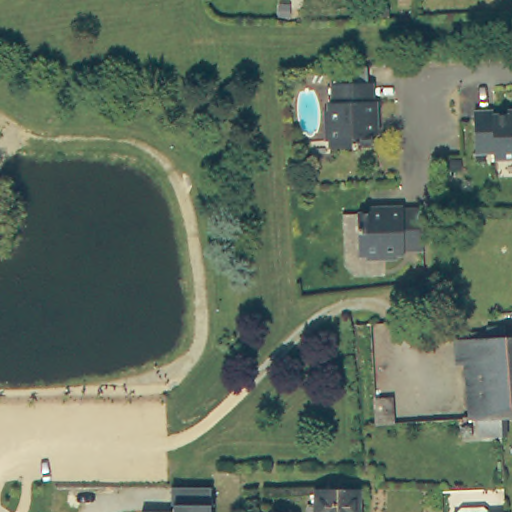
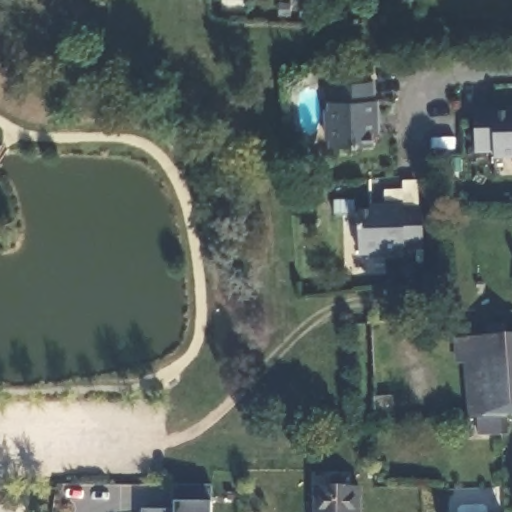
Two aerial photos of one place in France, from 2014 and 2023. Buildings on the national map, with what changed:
unchanged [(368,112),(372,112),(372,129),(368,130),(368,142),(326,144),(323,99),(327,100),(326,80),(367,79),(368,112)]
unchanged [(488,154),(488,147),(467,147),(467,106),(488,106),(488,110),(511,110),(511,105),(512,105),(512,154),(488,154)]
unchanged [(382,203),(383,205),(400,205),(400,204),(418,204),(418,245),(400,246),(400,250),(355,251),(353,209),(365,209),(365,203),(382,203)]
unchanged [(507,423),(467,424),(460,364),(452,363),(451,339),(512,337),(512,422),(507,423)]
unchanged [(388,426),(374,427),(373,400),(387,400),(388,426)]
unchanged [(508,449),(467,449),(467,424),(507,423),(508,449)]
unchanged [(211,487),(211,505),(210,512),(172,512),(172,486),(211,487)]
unchanged [(316,512),(316,492),(359,492),(359,512),(316,512)]
unchanged [(487,510),(487,512),(454,512),(453,510),(487,510)]
unchanged [(172,512),(141,512),(141,511),(172,512)]

